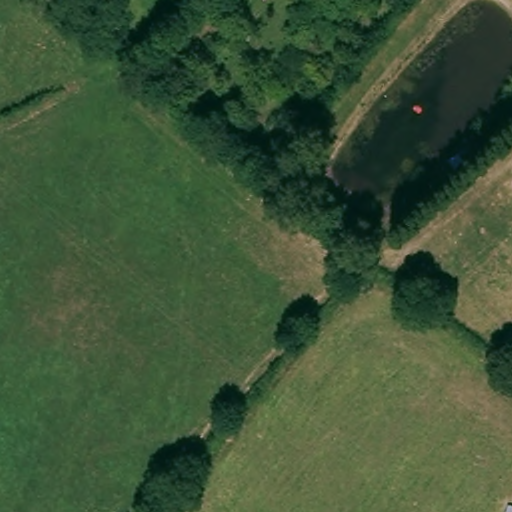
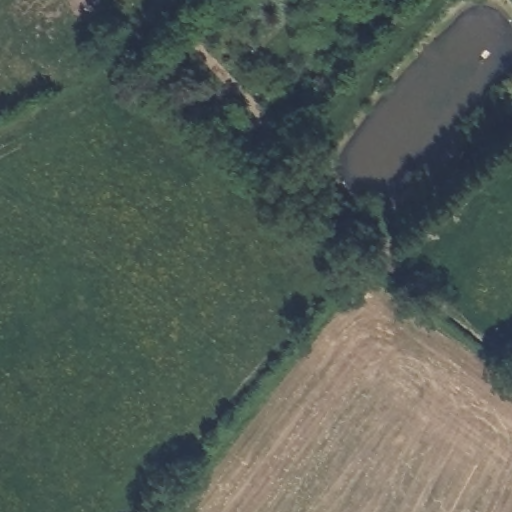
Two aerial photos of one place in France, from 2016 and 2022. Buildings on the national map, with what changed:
[]

